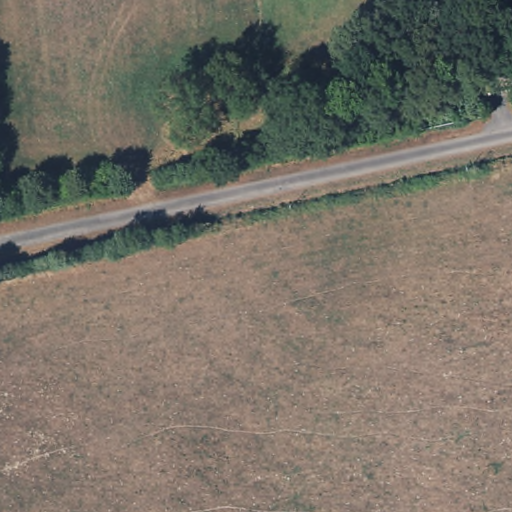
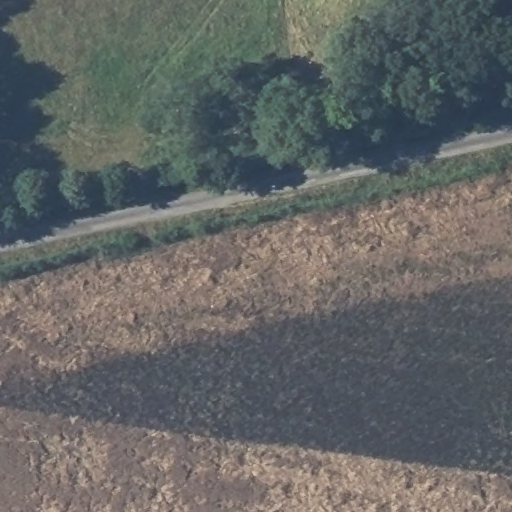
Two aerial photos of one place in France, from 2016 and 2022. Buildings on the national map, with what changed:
[]

